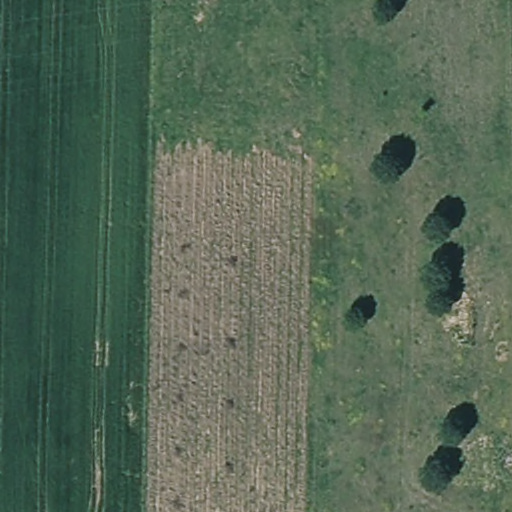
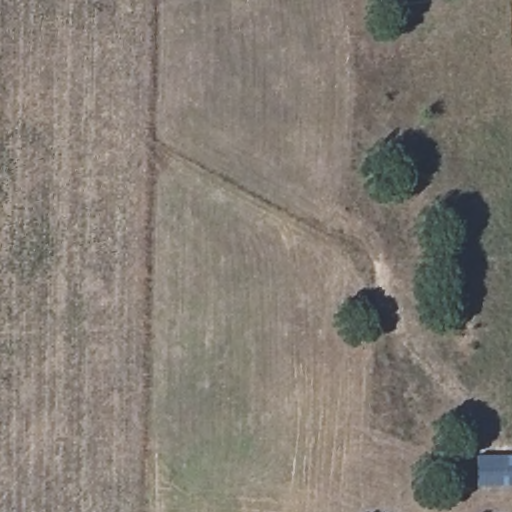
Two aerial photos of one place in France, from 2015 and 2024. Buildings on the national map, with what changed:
new [(476,486),(476,454),(512,454),(512,485),(476,486)]

